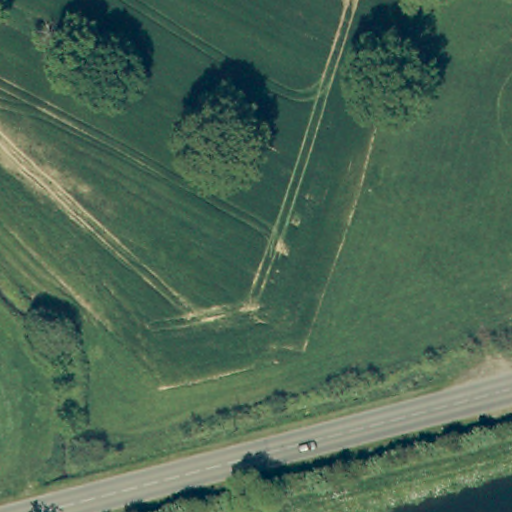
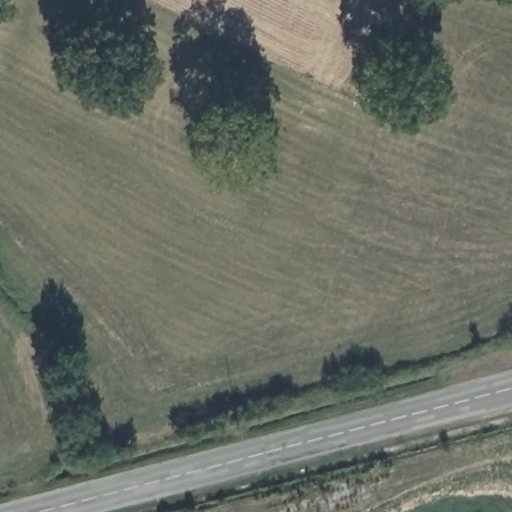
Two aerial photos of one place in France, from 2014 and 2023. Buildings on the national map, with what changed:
[]

